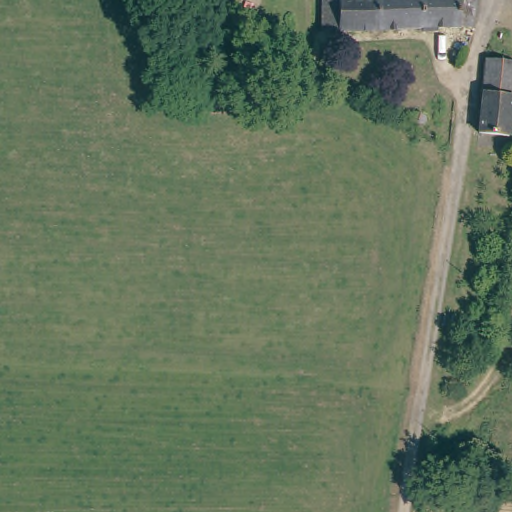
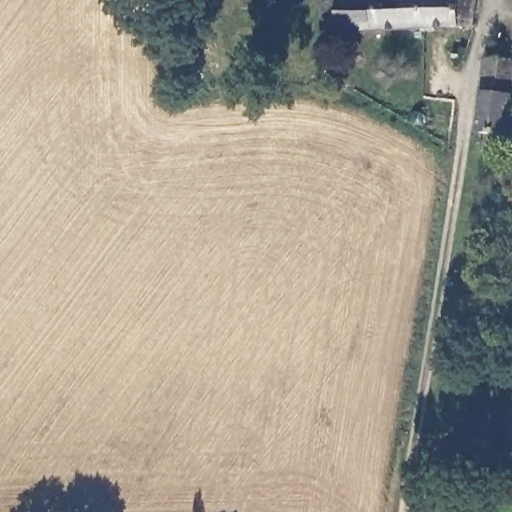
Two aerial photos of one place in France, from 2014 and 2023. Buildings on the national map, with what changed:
unchanged [(332,0),(479,0),(477,26),(332,24),(332,0)]
unchanged [(512,75),(512,104),(510,128),(480,125),(486,74),(512,75)]
unchanged [(436,124),(436,110),(452,110),(451,124),(436,124)]

